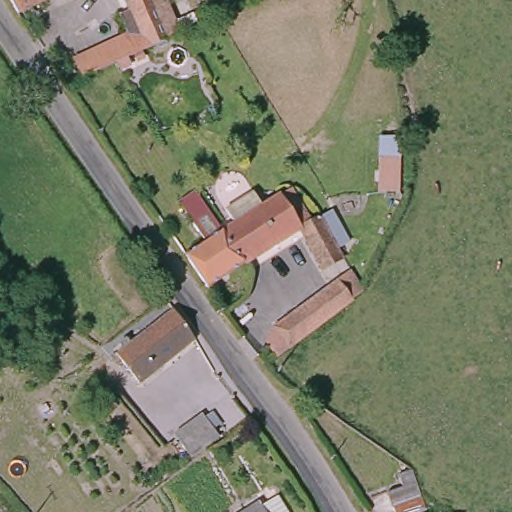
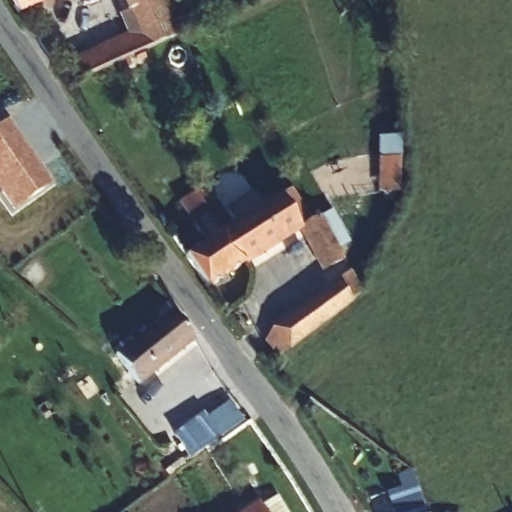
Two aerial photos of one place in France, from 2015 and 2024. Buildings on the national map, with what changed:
unchanged [(14,0),(55,0),(22,13),(14,0)]
unchanged [(174,22),(184,17),(190,28),(180,33),(161,42),(153,47),(141,54),(117,67),(88,82),(79,65),(137,33),(126,11),(136,6),(134,0),(164,0),(174,22)]
new [(0,195),(0,126),(6,122),(51,185),(12,212),(0,195)]
unchanged [(303,230),(244,268),(221,237),(250,218),(276,200),(279,199),(285,195),(300,217),(310,211),(314,217),(321,212),(322,214),(346,255),(331,265),(326,268),(303,230)]
unchanged [(190,259),(205,250),(189,226),(179,211),(196,201),(206,216),(221,237),(244,268),(211,291),(190,259)]
unchanged [(305,339),(291,321),(339,285),(353,304),(305,339)]
unchanged [(137,381),(120,352),(127,347),(121,338),(135,331),(140,338),(178,316),(196,343),(137,381)]
unchanged [(175,429),(202,411),(222,437),(195,455),(175,429)]
unchanged [(401,488),(395,475),(410,470),(423,512),(394,512),(388,494),(401,488)]
demolished [(292,512),(253,512),(280,493),(292,512)]
new [(276,497),(287,512),(241,512),(259,500),(262,506),(276,497)]

